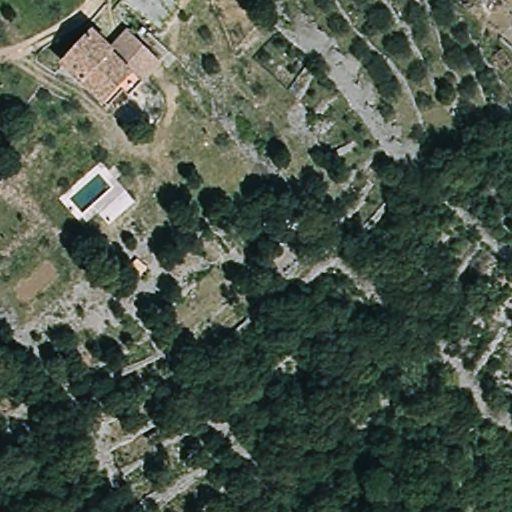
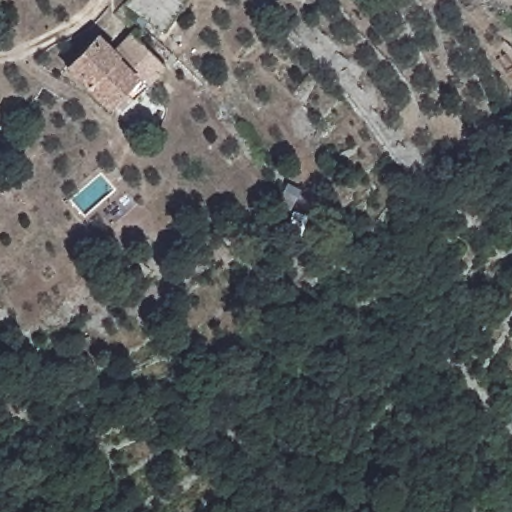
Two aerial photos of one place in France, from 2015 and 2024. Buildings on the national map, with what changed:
unchanged [(190,0),(166,34),(126,6),(132,0),(190,0)]
unchanged [(65,63),(99,28),(116,45),(132,28),(168,63),(135,97),(126,88),(109,106),(81,79),(65,63)]

